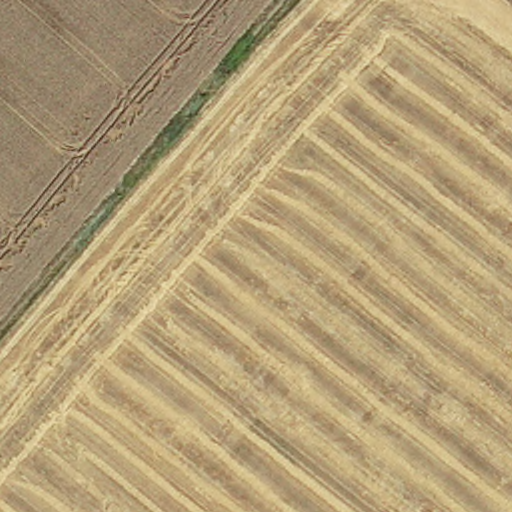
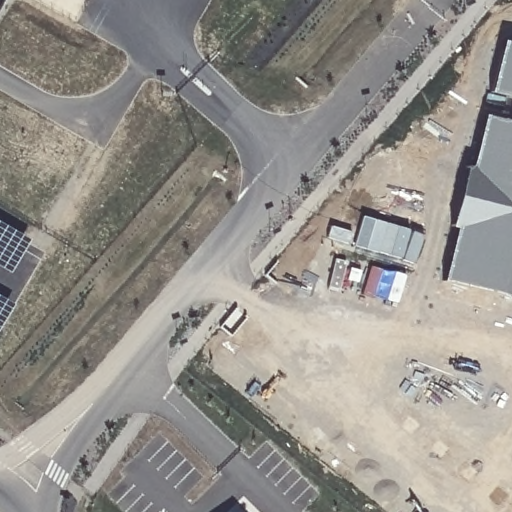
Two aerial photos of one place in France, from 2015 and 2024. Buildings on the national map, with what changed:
new [(491,91),(502,42),(512,44),(512,97),(491,91)]
new [(457,229),(451,227),(466,169),(473,166),(484,116),(512,123),(512,297),(443,280),(457,229)]

